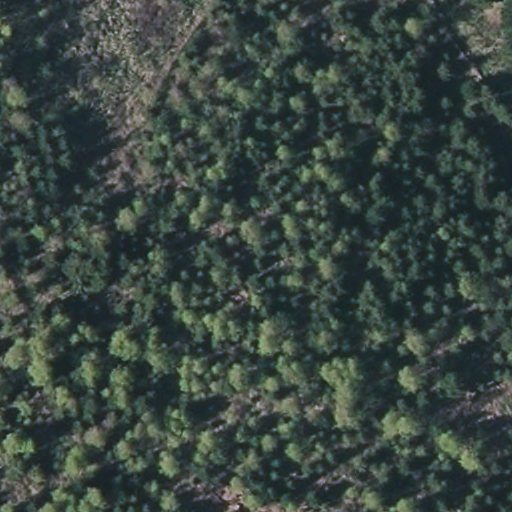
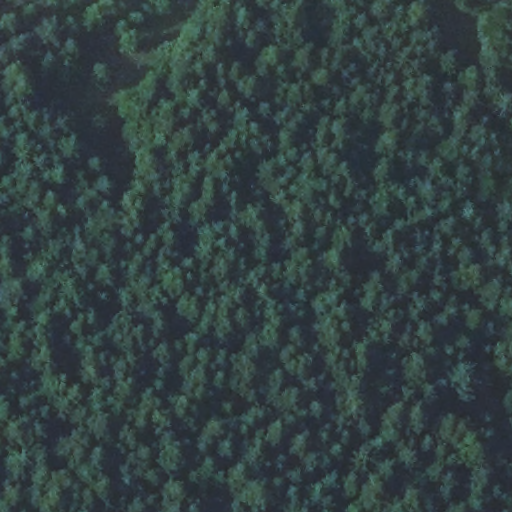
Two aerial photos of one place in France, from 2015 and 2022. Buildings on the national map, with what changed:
[]

